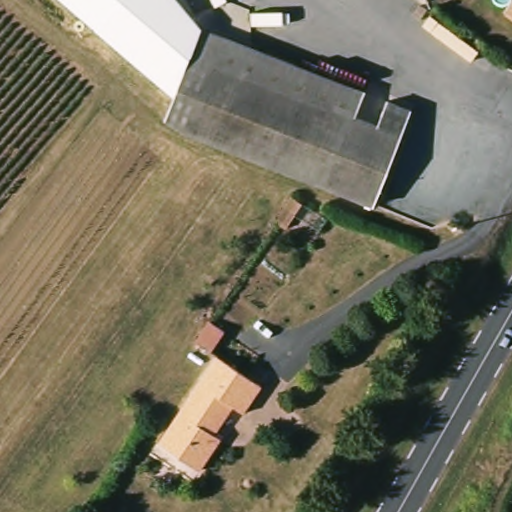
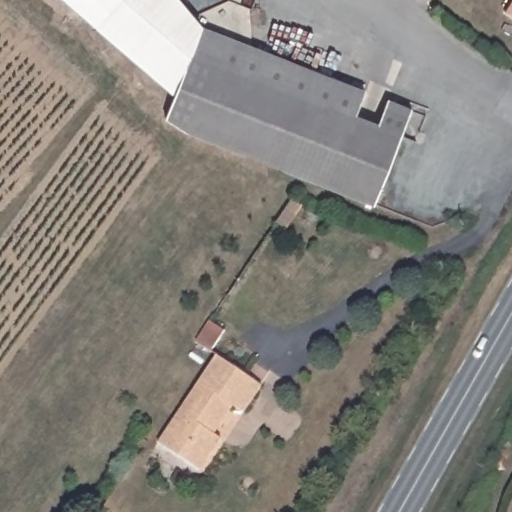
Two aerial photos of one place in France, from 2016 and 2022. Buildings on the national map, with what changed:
unchanged [(187,134),(165,119),(173,95),(63,0),(178,0),(202,28),(365,91),(355,114),(378,123),(387,100),(410,109),(372,206),(187,134)]
unchanged [(506,0),(512,0),(512,41),(487,22),(506,0)]
unchanged [(222,334),(212,353),(196,344),(208,325),(222,334)]
unchanged [(168,431),(216,359),(261,389),(242,418),(231,412),(216,436),(221,441),(200,475),(170,455),(157,447),(168,431)]

